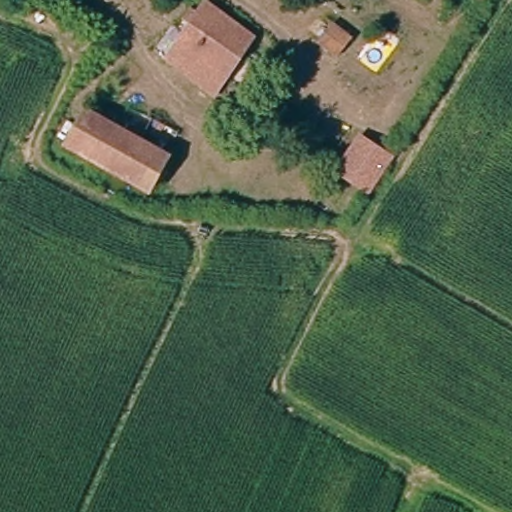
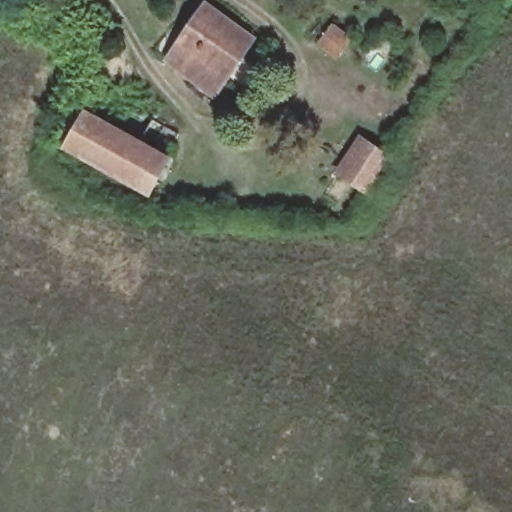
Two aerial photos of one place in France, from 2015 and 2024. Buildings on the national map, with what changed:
unchanged [(209,90),(167,56),(207,2),(252,38),(209,90)]
unchanged [(348,31),(330,58),(303,39),(305,36),(322,12),(348,31)]
unchanged [(145,190),(65,149),(82,115),(162,157),(145,190)]
unchanged [(344,228),(312,205),(360,138),(388,158),(393,161),(344,228)]

